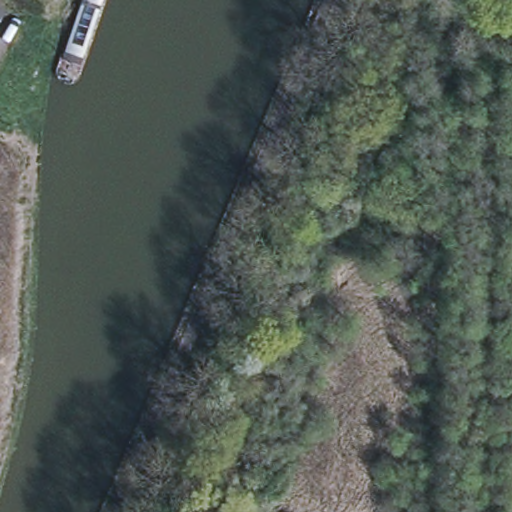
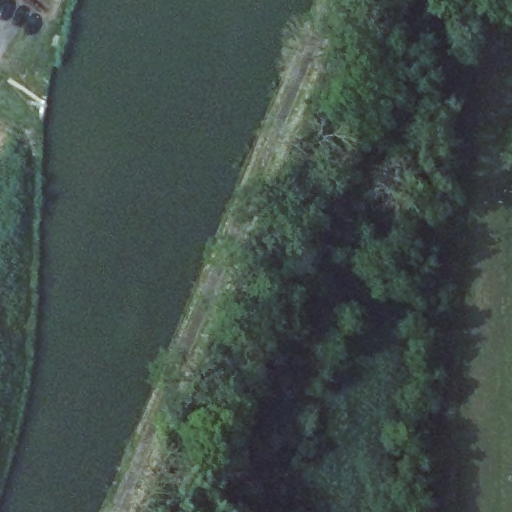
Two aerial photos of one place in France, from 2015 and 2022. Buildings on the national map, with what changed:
[]

